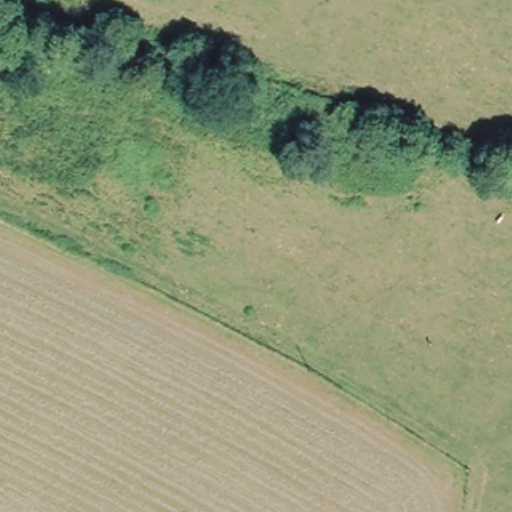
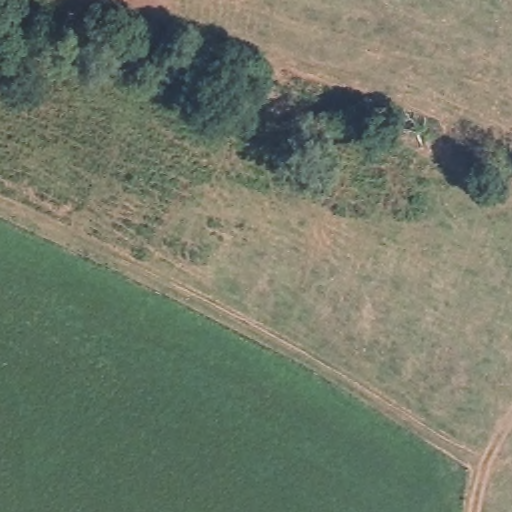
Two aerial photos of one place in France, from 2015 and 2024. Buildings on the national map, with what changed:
[]

